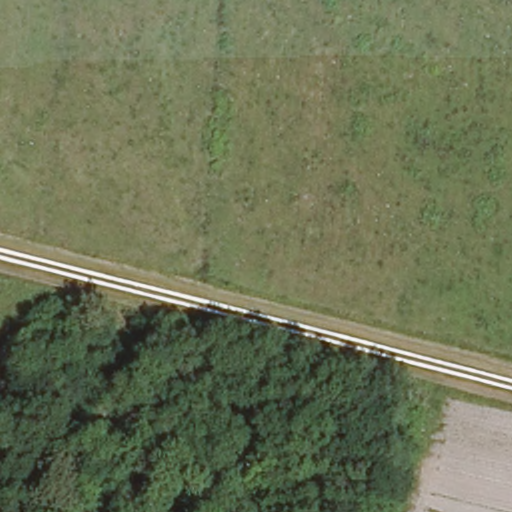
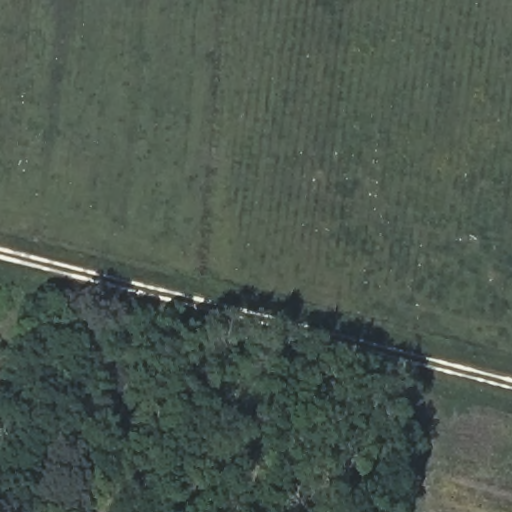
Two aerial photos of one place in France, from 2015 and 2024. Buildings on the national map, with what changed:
[]

